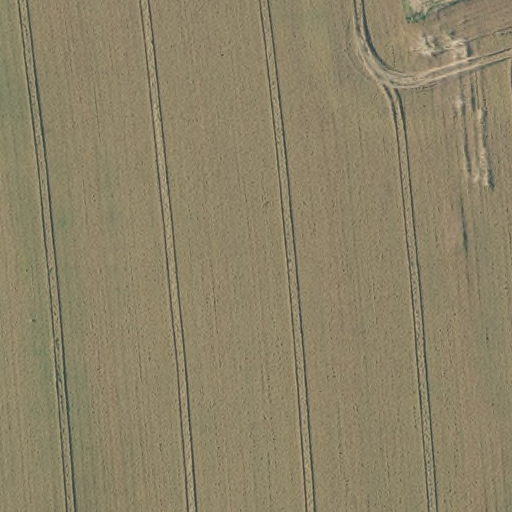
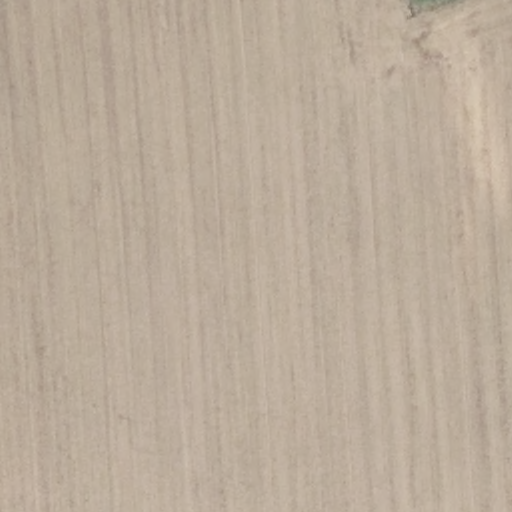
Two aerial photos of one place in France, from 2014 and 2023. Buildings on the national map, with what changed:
[]

